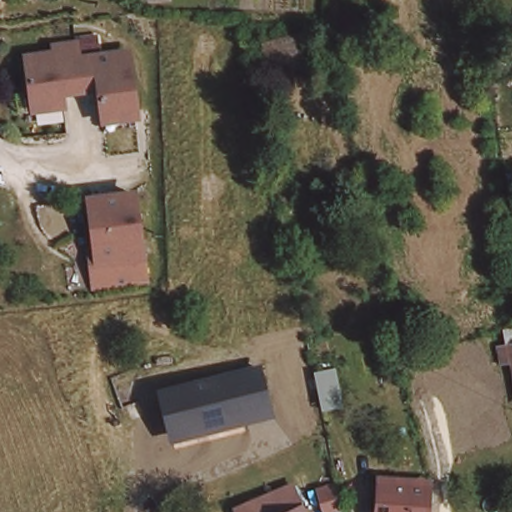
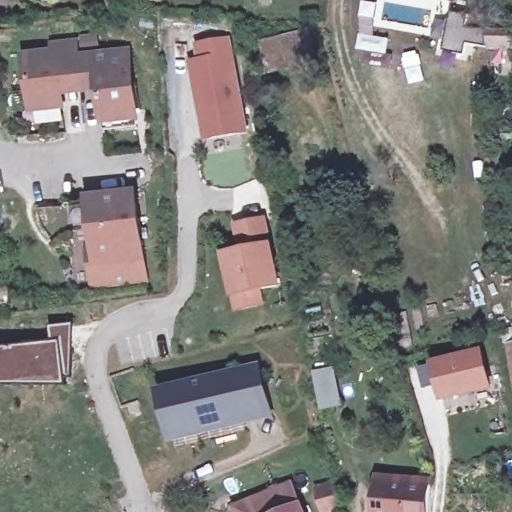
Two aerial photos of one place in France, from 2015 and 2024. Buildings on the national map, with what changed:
new [(361,1),(377,2),(373,40),(370,39),(370,45),(383,47),(385,54),(357,50),(361,1)]
unchanged [(245,40),(295,34),(298,65),(250,71),(245,40)]
unchanged [(512,36),(510,55),(487,54),(483,34),(512,36)]
new [(197,60),(195,43),(230,36),(247,132),(203,141),(188,62),(197,60)]
unchanged [(60,104),(28,108),(23,53),(52,51),(52,43),(75,42),(77,55),(127,51),(132,117),(100,120),(96,87),(79,89),(58,91),(60,104)]
new [(418,49),(426,81),(409,85),(401,53),(418,49)]
unchanged [(132,197),(141,284),(89,290),(85,250),(92,250),(87,202),(132,197)]
new [(232,297),(222,253),(237,250),(232,224),(266,218),(272,243),(282,287),(263,291),(265,305),(235,312),(232,297)]
new [(75,324),(72,377),(66,377),(67,385),(0,386),(0,349),(52,341),(50,326),(75,324)]
unchanged [(512,357),(505,357),(502,338),(512,338),(512,357)]
new [(482,348),(492,388),(441,402),(430,362),(482,348)]
unchanged [(302,375),(301,370),(321,366),(328,403),(307,406),(302,375)]
unchanged [(257,367),(268,412),(230,422),(219,378),(257,367)]
unchanged [(230,422),(176,436),(165,392),(219,378),(230,422)]
unchanged [(366,512),(371,479),(425,488),(423,512),(366,512)]
unchanged [(327,508),(318,512),(313,512),(304,489),(322,481),(324,491),(327,508)]
unchanged [(290,489),(300,512),(241,512),(239,508),(290,489)]

